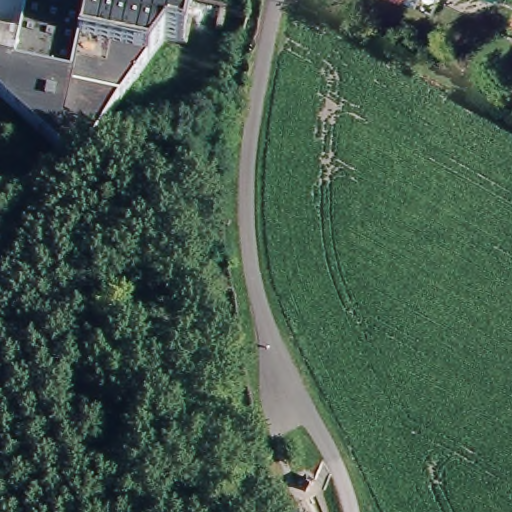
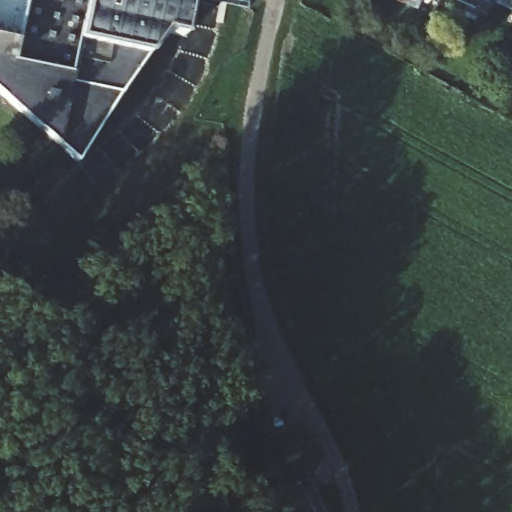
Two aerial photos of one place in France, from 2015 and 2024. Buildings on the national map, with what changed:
unchanged [(14,6),(42,29),(51,37),(50,46),(45,86),(45,87),(42,102),(40,122),(19,103),(0,86),(0,0),(7,0),(14,6)]
unchanged [(195,0),(188,38),(172,37),(167,37),(107,108),(96,120),(72,148),(69,146),(50,130),(40,122),(42,102),(45,87),(45,86),(50,46),(51,37),(42,29),(14,6),(7,0),(195,0)]
unchanged [(302,487),(296,475),(309,470),(314,482),(307,483),(302,487)]

